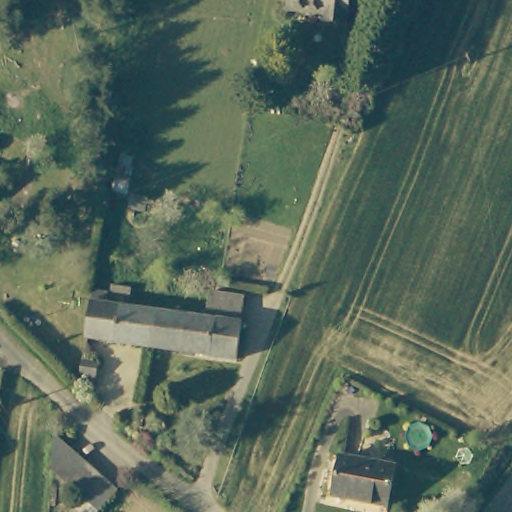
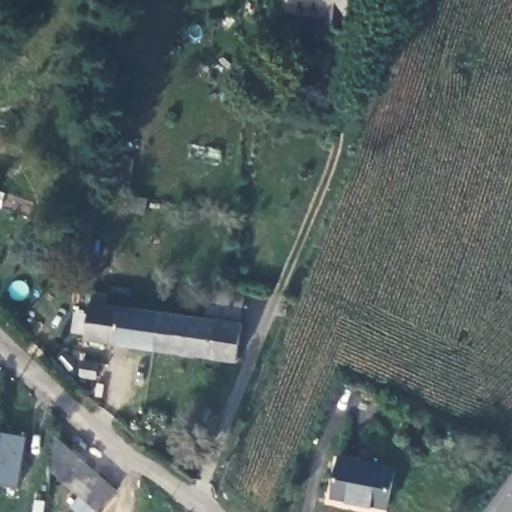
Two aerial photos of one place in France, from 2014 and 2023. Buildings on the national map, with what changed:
unchanged [(341,23),(339,31),(315,26),(317,18),(285,11),(287,0),(349,0),(345,24),(341,23)]
unchanged [(2,180),(0,185),(0,179),(2,180)]
unchanged [(92,291),(107,293),(105,304),(155,312),(149,347),(84,336),(90,301),(92,291)]
unchanged [(207,291),(246,298),(240,327),(200,320),(207,291)]
unchanged [(200,320),(240,327),(234,360),(149,347),(155,312),(200,320)]
unchanged [(70,353),(90,356),(87,371),(67,367),(70,353)]
new [(0,484),(0,432),(26,436),(17,487),(0,484)]
unchanged [(59,433),(117,495),(99,512),(74,512),(68,506),(76,499),(54,476),(59,433)]
unchanged [(343,454),(396,467),(386,506),(333,493),(343,454)]

